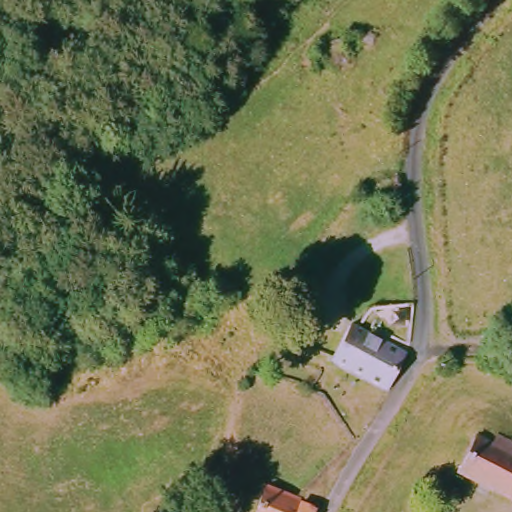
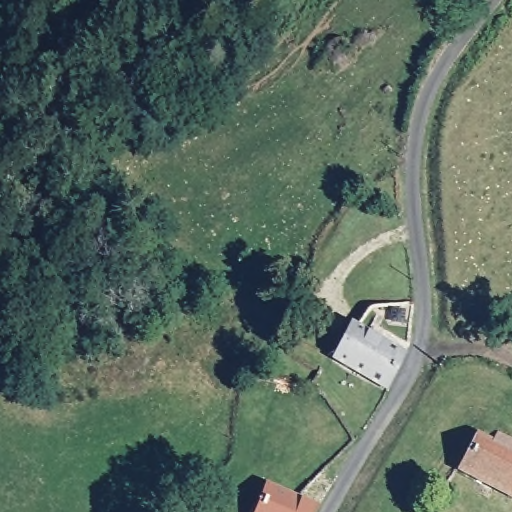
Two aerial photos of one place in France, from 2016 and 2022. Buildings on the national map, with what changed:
unchanged [(336,369),(359,319),(413,345),(388,395),(382,392),(336,369)]
unchanged [(467,485),(482,434),(512,444),(512,501),(467,485)]
unchanged [(322,506),(320,512),(258,512),(270,482),(315,501),(322,506)]

